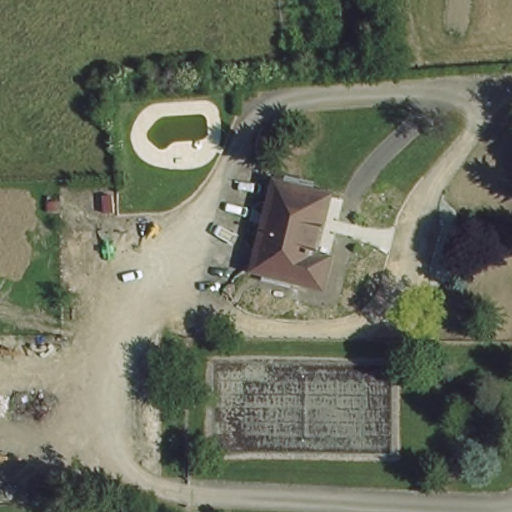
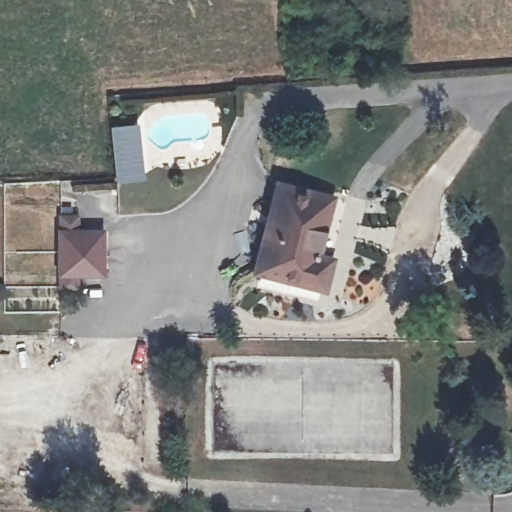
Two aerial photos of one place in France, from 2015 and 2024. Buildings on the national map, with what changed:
new [(109,124),(137,121),(144,177),(115,180),(109,124)]
unchanged [(318,286),(250,274),(265,189),(333,201),(318,286)]
new [(57,274),(56,226),(57,213),(78,213),(78,227),(103,227),(104,276),(77,275),(78,288),(58,287),(57,274)]

